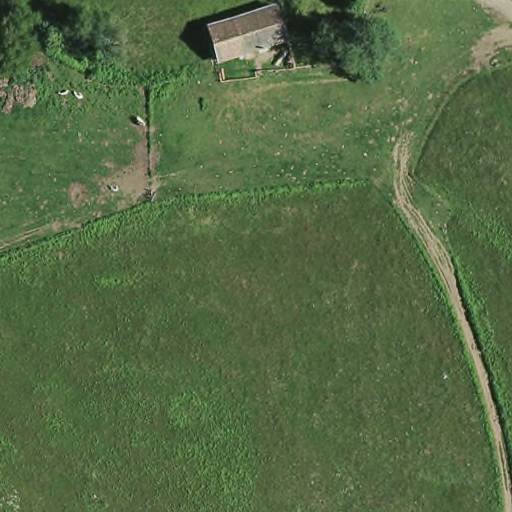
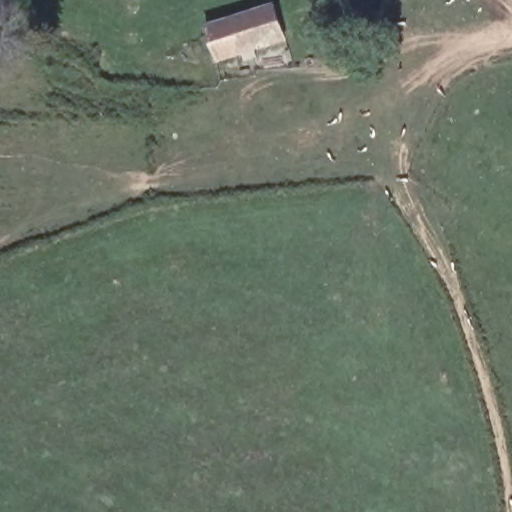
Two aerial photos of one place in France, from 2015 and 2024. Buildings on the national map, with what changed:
unchanged [(274,7),(285,42),(216,63),(205,30),(274,7)]

